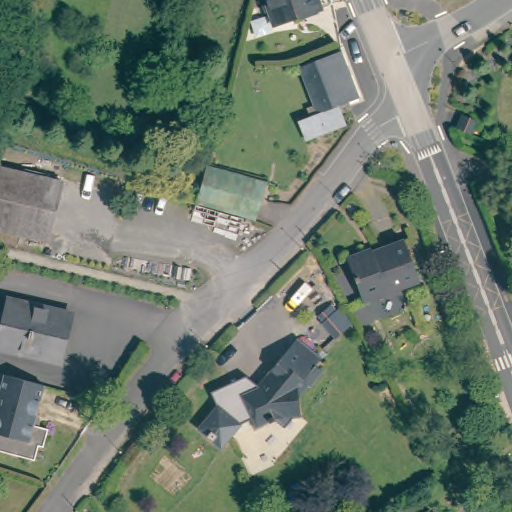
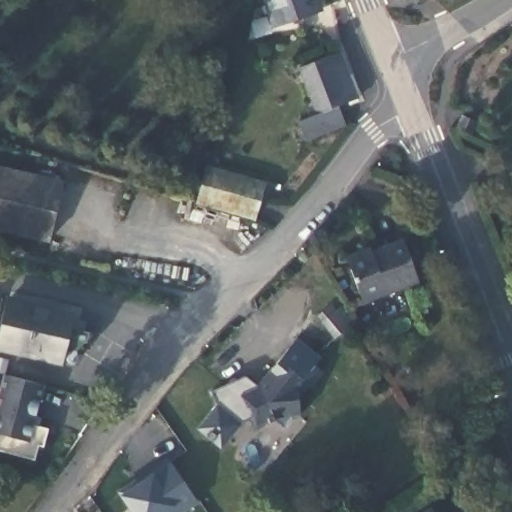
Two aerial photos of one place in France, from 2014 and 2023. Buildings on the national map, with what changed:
unchanged [(279,26),(268,0),(318,0),(322,10),(279,26)]
unchanged [(309,137),(302,120),(320,112),(300,66),(343,50),(361,97),(340,104),(343,110),(348,123),(309,137)]
unchanged [(270,167),(256,219),(200,203),(203,192),(209,166),(213,152),(270,167)]
unchanged [(43,243),(0,233),(0,171),(57,185),(43,243)]
unchanged [(372,251),(406,238),(423,284),(366,305),(347,254),(370,246),(372,251)]
unchanged [(12,302),(75,315),(66,362),(3,350),(12,302)]
unchanged [(317,380),(324,387),(312,402),(310,401),(301,412),(302,433),(295,432),(285,445),(277,435),(258,444),(254,435),(241,442),(222,465),(199,447),(218,424),(211,409),(249,390),(259,401),(264,402),(269,401),(274,397),(268,392),(299,352),(324,372),(317,380)]
unchanged [(49,429),(45,447),(40,446),(36,461),(0,452),(0,390),(1,391),(5,375),(44,385),(35,421),(38,426),(49,429)]
new [(185,512),(165,512),(133,512),(120,495),(117,490),(166,457),(199,503),(185,512)]
unchanged [(435,503),(443,512),(425,512),(435,503)]

